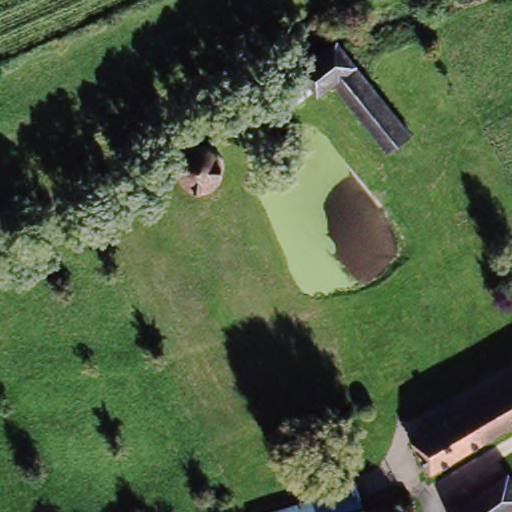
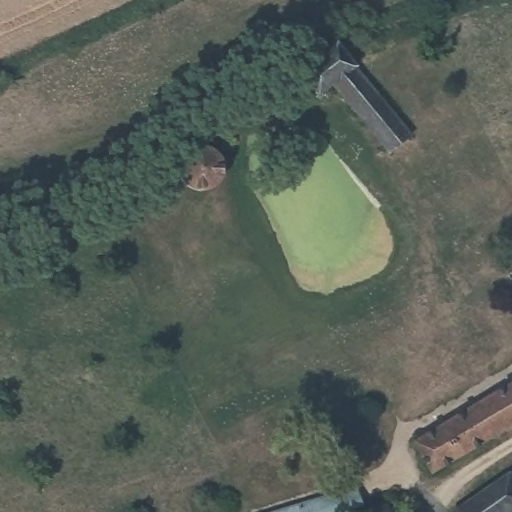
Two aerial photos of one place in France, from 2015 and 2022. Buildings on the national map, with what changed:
unchanged [(404,130),(380,147),(329,77),(295,101),(277,78),(335,36),(404,130)]
unchanged [(215,154),(221,166),(221,170),(219,182),(213,190),(202,195),(187,194),(177,188),(172,176),(172,172),(174,160),(180,153),(187,149),(196,146),(206,148),(215,154)]
unchanged [(410,450),(477,407),(512,385),(512,423),(427,480),(410,450)]
unchanged [(507,480),(512,487),(512,510),(509,512),(460,512),(507,480)]
unchanged [(346,512),(274,512),(354,487),(361,506),(361,508),(346,512)]
unchanged [(386,512),(367,512),(384,506),(386,512)]

